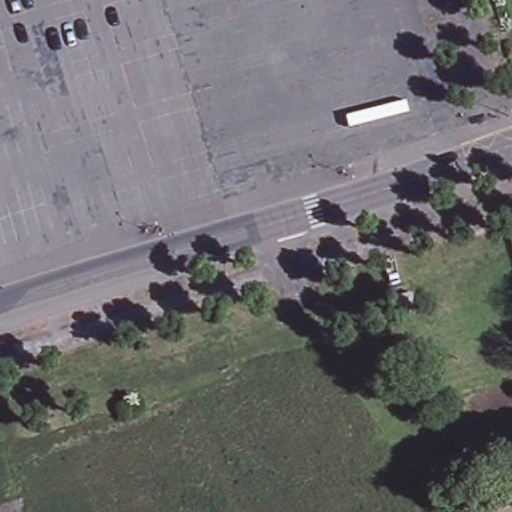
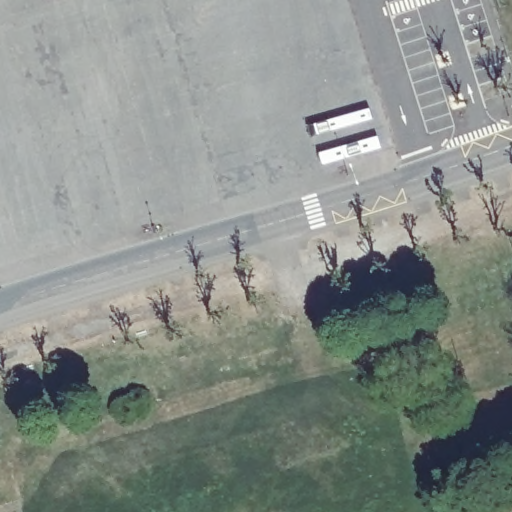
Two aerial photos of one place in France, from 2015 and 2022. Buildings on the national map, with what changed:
unchanged [(403,293),(405,303),(380,311),(377,300),(403,293)]

